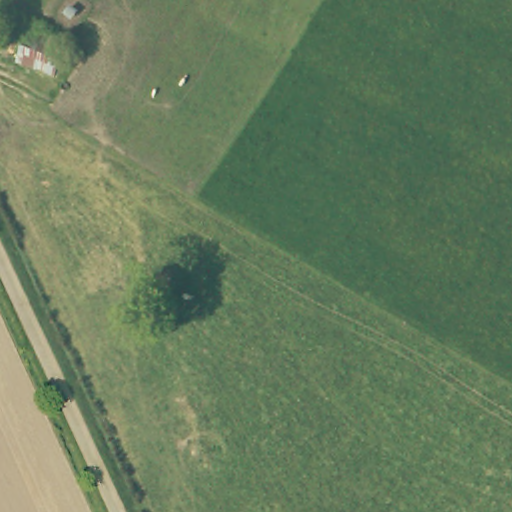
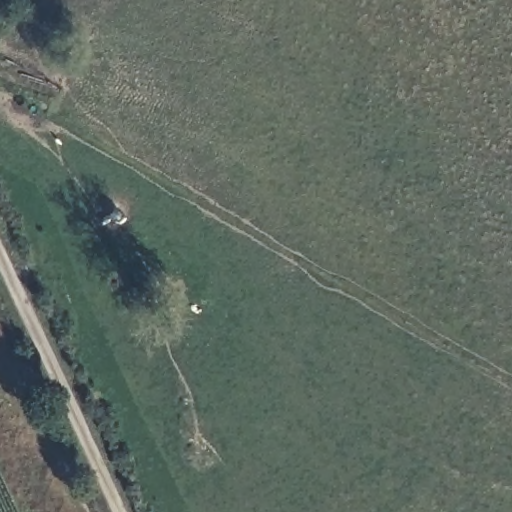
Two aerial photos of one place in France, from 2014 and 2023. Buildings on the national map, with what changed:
[]

